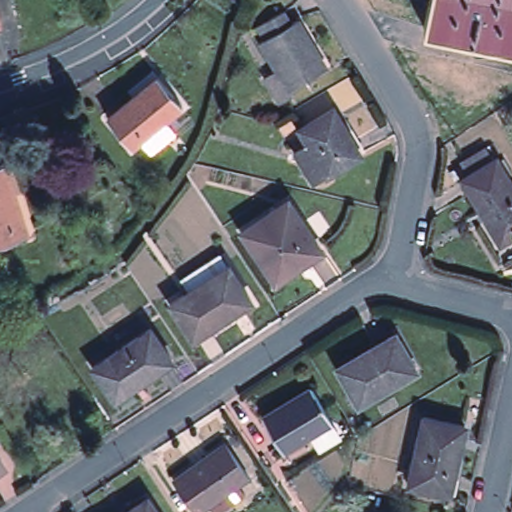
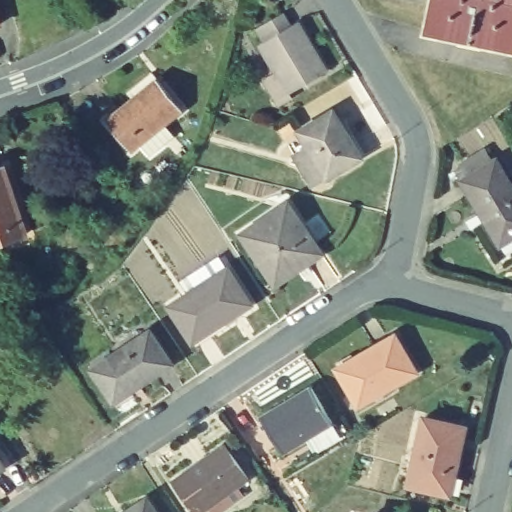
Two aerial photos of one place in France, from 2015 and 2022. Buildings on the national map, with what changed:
unchanged [(428,0),(512,0),(512,53),(421,33),(428,0)]
unchanged [(2,19),(0,20),(0,13),(2,19)]
unchanged [(272,109),(255,81),(268,74),(252,46),(256,44),(249,32),(275,17),(282,29),(290,24),(320,74),(282,96),(285,100),(272,109)]
unchanged [(137,139),(128,146),(103,116),(130,94),(125,88),(150,68),(155,74),(180,104),(162,119),(172,131),(147,151),(137,139)]
unchanged [(283,160),(297,151),(287,134),(319,116),(349,163),(315,182),(302,190),(283,160)]
unchanged [(502,240),(498,242),(497,239),(492,243),(482,227),(488,224),(461,179),(464,177),(455,161),(467,154),(477,169),(495,158),(512,185),(512,253),(510,254),(502,240)]
unchanged [(6,164),(27,232),(0,240),(0,165),(6,164)]
unchanged [(320,250),(281,278),(260,248),(255,250),(242,232),(287,202),(320,250)]
unchanged [(191,342),(168,305),(187,293),(180,281),(221,255),(227,267),(251,304),(191,342)]
unchanged [(150,332),(170,364),(113,401),(92,369),(150,332)]
unchanged [(394,333),(416,369),(357,404),(336,368),(394,333)]
unchanged [(320,449),(311,434),(282,451),(260,416),(310,386),(332,422),(329,423),(338,438),(320,449)]
unchanged [(450,493),(408,484),(423,417),(465,426),(450,493)]
unchanged [(207,502),(197,509),(172,474),(225,439),(249,474),(238,481),(244,489),(213,511),(207,502)]
unchanged [(144,494),(156,512),(118,512),(144,494)]

